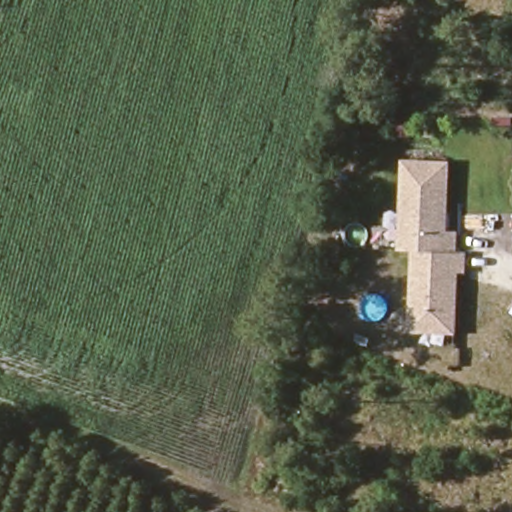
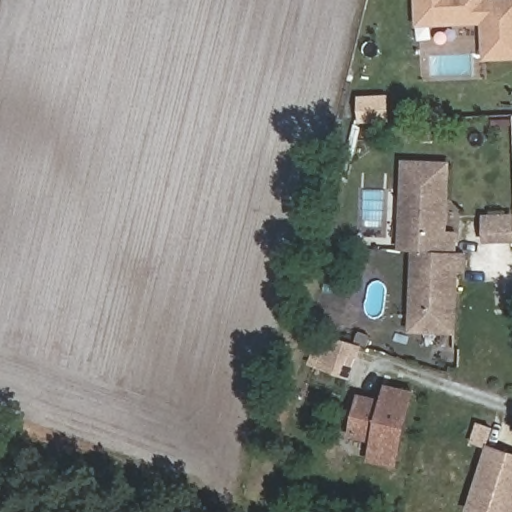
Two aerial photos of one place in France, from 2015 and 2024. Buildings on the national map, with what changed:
new [(485,1),(509,0),(512,0),(512,56),(487,57),(486,20),(419,23),(418,0),(485,0),(485,1)]
unchanged [(446,231),(457,230),(457,249),(450,249),(451,266),(443,267),(447,329),(406,332),(400,253),(404,252),(398,165),(441,162),(446,231)]
new [(358,395),(382,400),(385,385),(410,391),(394,463),(370,458),(373,438),(350,433),(358,395)]
new [(512,455),(512,512),(470,512),(486,448),(512,455)]

